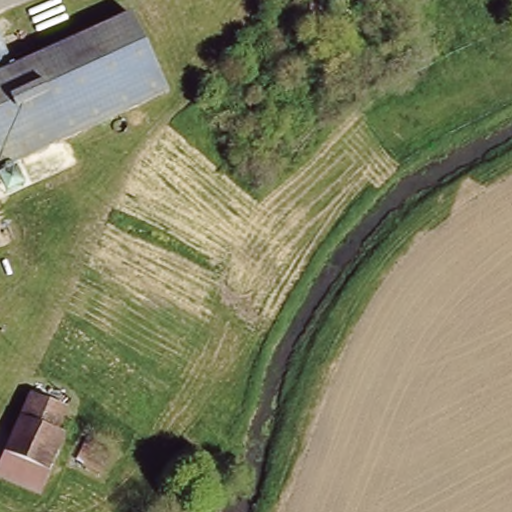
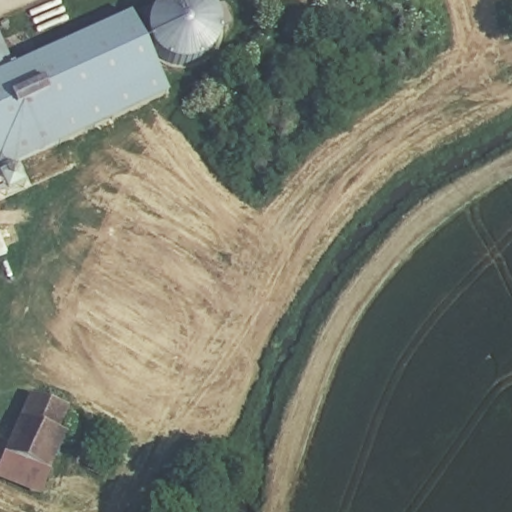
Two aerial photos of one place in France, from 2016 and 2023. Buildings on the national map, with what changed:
new [(210,6),(217,15),(220,27),(219,41),(212,53),(202,62),(194,67),(180,68),(168,66),(158,61),(154,57),(147,42),(145,37),(144,29),(145,23),(147,16),(152,6),(160,0),(204,0),(210,6)]
unchanged [(27,63),(137,15),(169,94),(59,142),(32,75),(29,66),(27,63)]
unchanged [(0,79),(0,25),(10,20),(27,63),(29,66),(0,79)]
unchanged [(59,142),(0,167),(0,79),(29,66),(32,75),(59,142)]
unchanged [(63,410),(42,472),(7,460),(29,395),(64,407),(63,410)]

